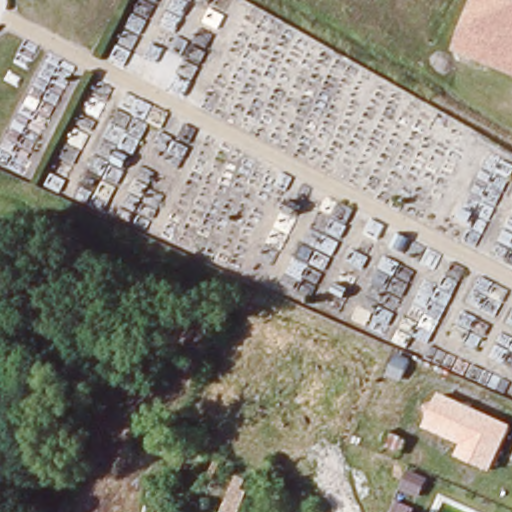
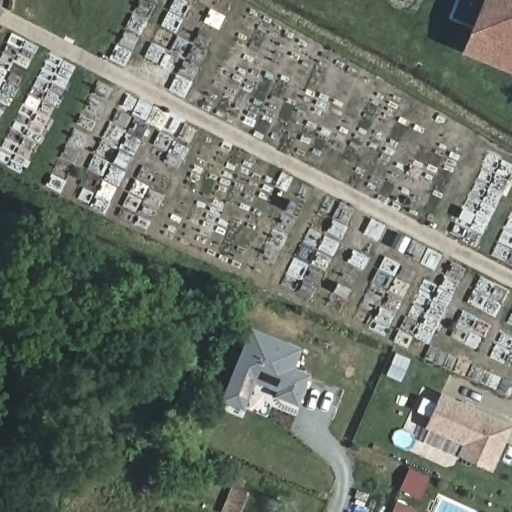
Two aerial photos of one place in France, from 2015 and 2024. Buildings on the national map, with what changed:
unchanged [(483,0),(512,0),(512,70),(462,49),(483,0)]
new [(258,330),(303,350),(295,369),(311,377),(300,403),(282,395),(285,389),(258,377),(246,405),(228,398),(258,330)]
unchanged [(461,444),(424,428),(440,393),(512,426),(512,427),(491,472),(456,457),(461,444)]
unchanged [(240,482),(236,492),(242,496),(235,512),(219,512),(231,479),(240,482)]

